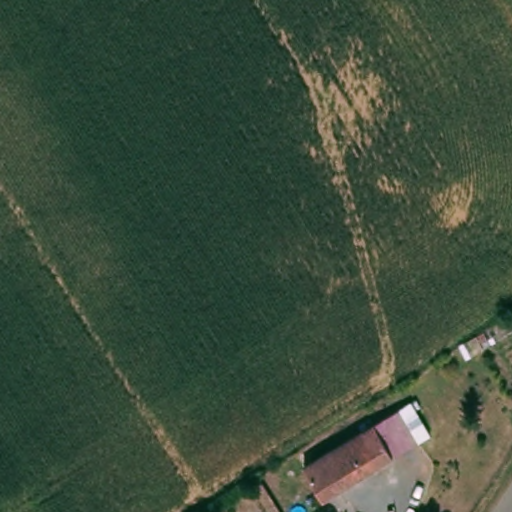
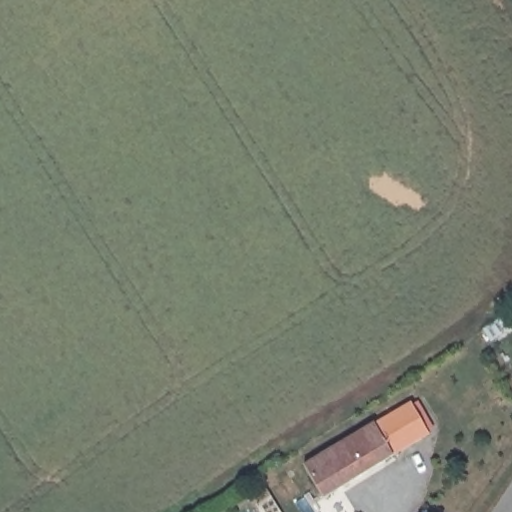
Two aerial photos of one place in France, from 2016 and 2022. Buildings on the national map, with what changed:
unchanged [(398,452),(328,496),(310,463),(379,421),(398,452)]

